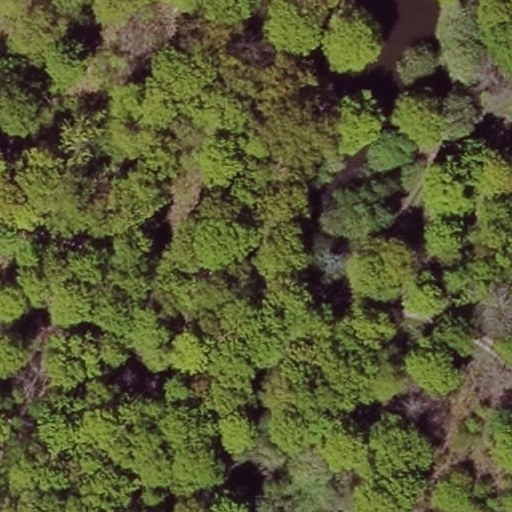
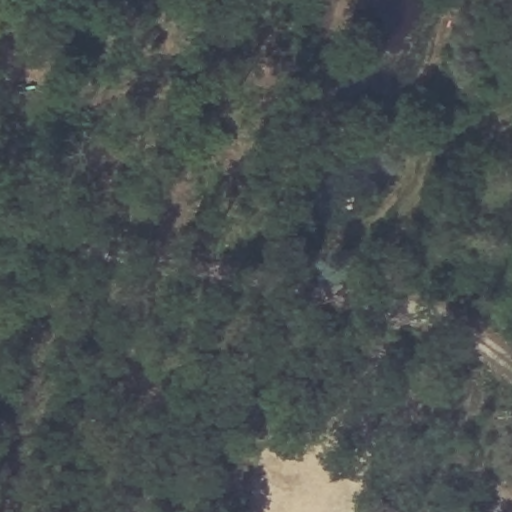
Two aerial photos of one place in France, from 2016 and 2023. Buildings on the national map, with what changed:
unchanged [(446,186),(461,202),(441,222),(430,205),(446,186)]

